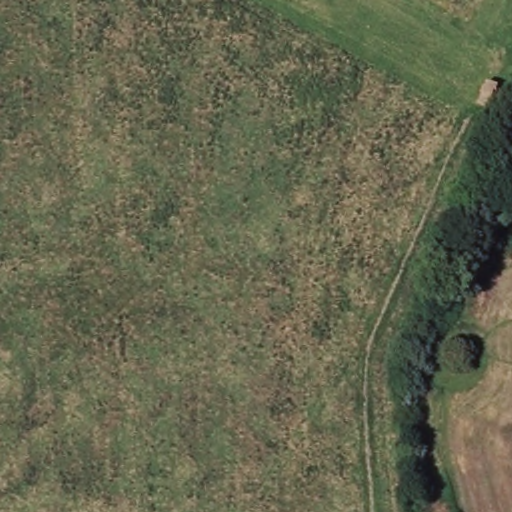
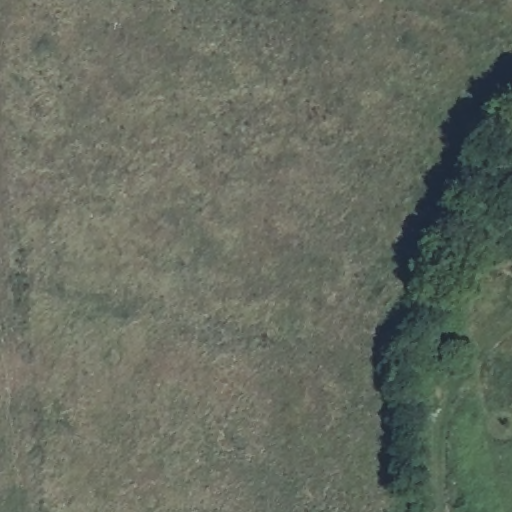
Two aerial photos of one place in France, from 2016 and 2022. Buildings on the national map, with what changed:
[]

